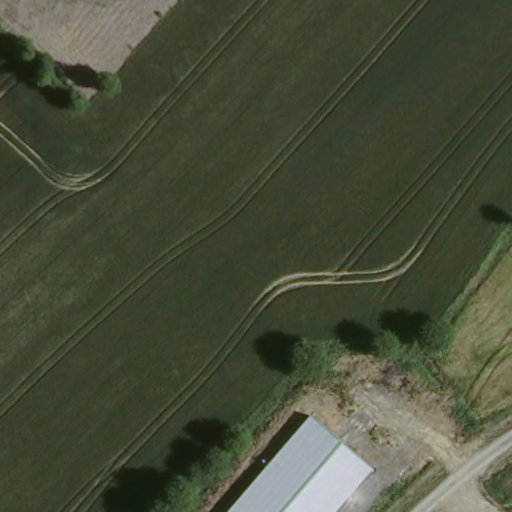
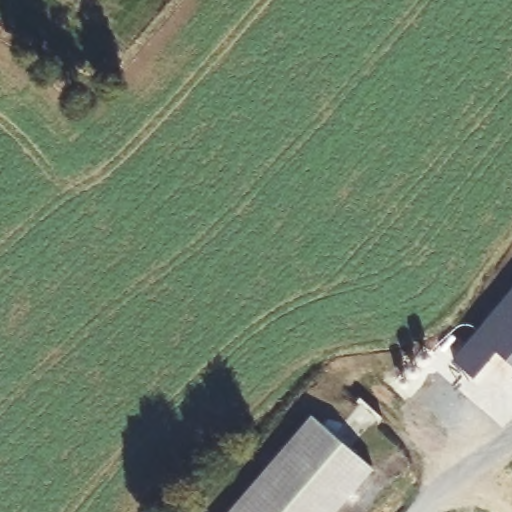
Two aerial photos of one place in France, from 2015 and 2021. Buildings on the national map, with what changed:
new [(512,286),(512,361),(495,346),(472,373),(452,357),(512,286)]
unchanged [(227,512),(311,414),(373,467),(335,512),(227,512)]

